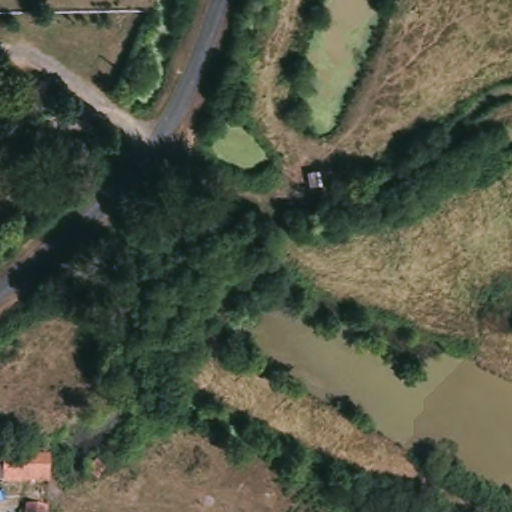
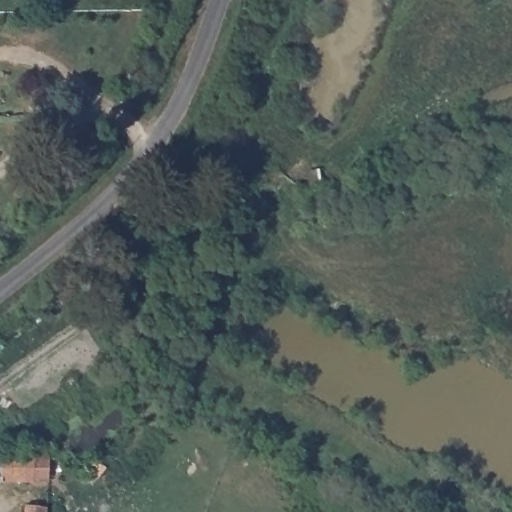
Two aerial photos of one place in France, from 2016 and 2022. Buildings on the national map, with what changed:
unchanged [(0,484),(0,456),(48,455),(49,484),(0,484)]
unchanged [(23,504),(49,507),(49,512),(22,512),(23,504)]

